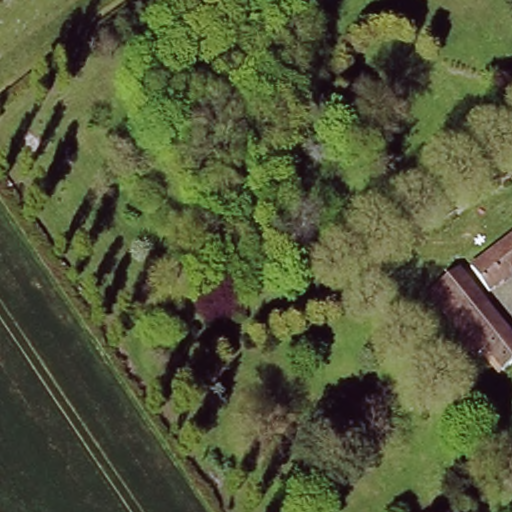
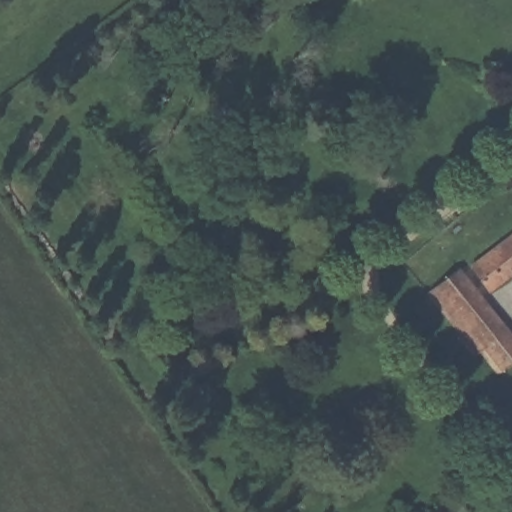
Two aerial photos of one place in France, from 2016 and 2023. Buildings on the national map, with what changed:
unchanged [(512,226),(512,276),(487,294),(470,273),(482,263),(473,252),(512,226)]
unchanged [(491,308),(512,339),(512,368),(497,378),(470,341),(462,348),(422,295),(458,268),(491,308)]
unchanged [(504,471),(512,464),(512,483),(504,471)]

